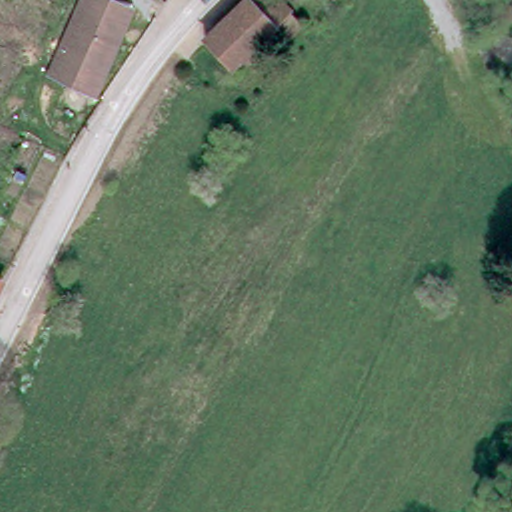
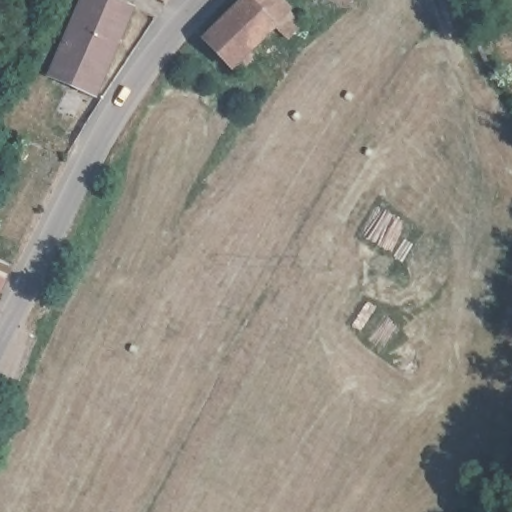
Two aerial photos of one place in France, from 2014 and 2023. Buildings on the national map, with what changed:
unchanged [(52,75),(85,0),(90,0),(131,17),(116,52),(98,97),(52,75)]
unchanged [(206,40),(246,0),(250,0),(268,17),(277,27),(235,69),(206,40)]
unchanged [(3,282),(0,288),(0,281),(3,282)]

